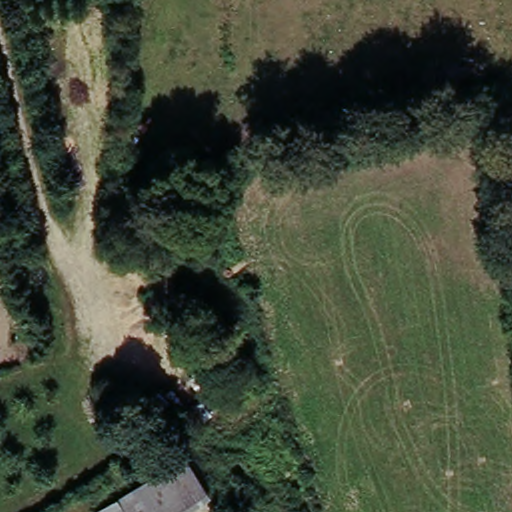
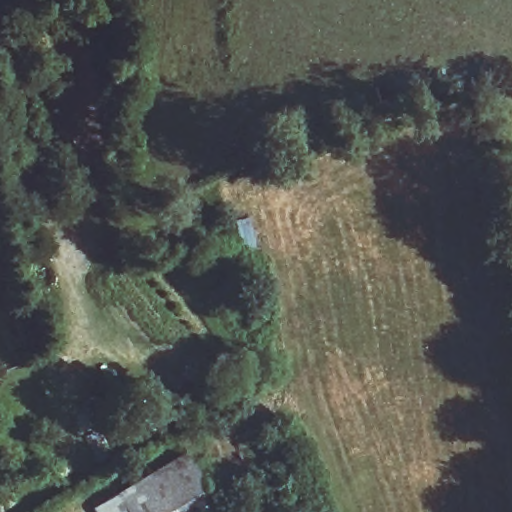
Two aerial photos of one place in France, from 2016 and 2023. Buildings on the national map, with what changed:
unchanged [(187,461),(207,496),(180,512),(155,512),(141,486),(187,461)]
unchanged [(155,512),(94,512),(141,486),(155,512)]

